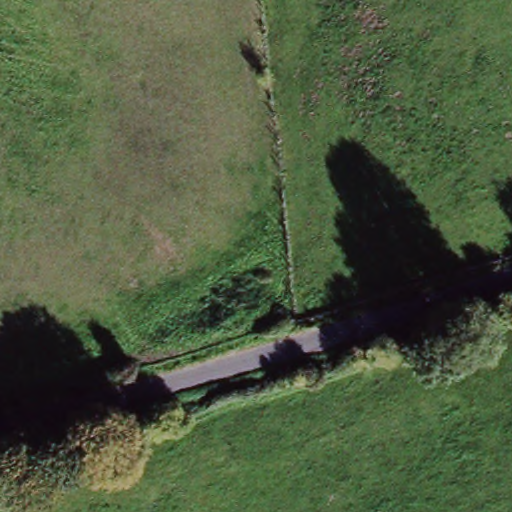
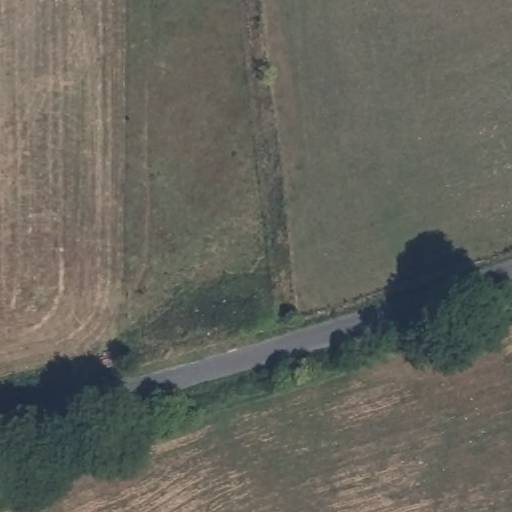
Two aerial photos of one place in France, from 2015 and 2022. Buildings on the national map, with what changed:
[]

